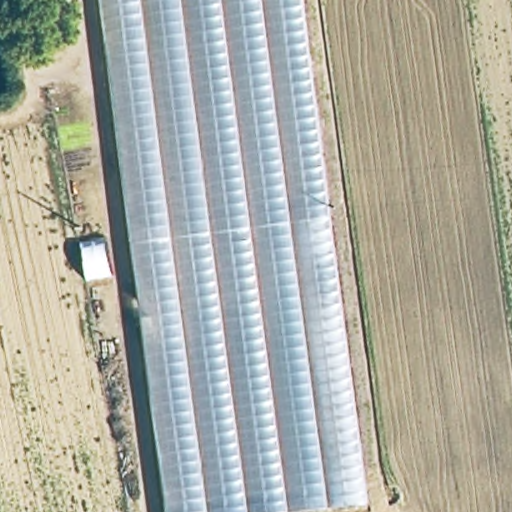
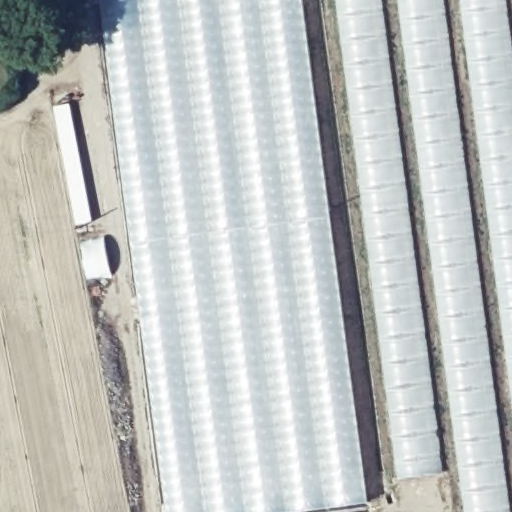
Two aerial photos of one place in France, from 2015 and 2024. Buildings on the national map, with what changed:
unchanged [(164,512),(95,0),(305,0),(367,504),(303,512),(164,512)]
new [(460,512),(454,471),(403,479),(331,0),(512,0),(512,512),(460,512)]

